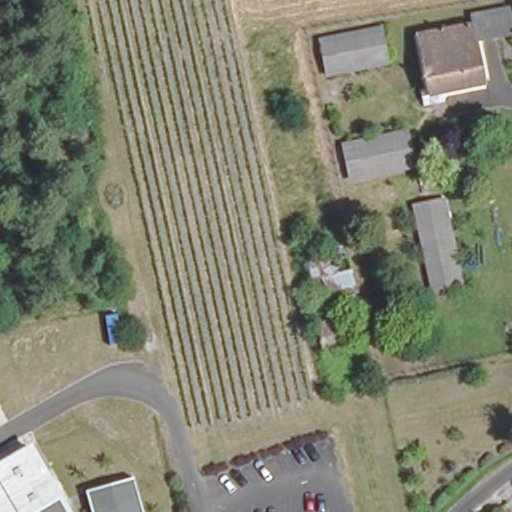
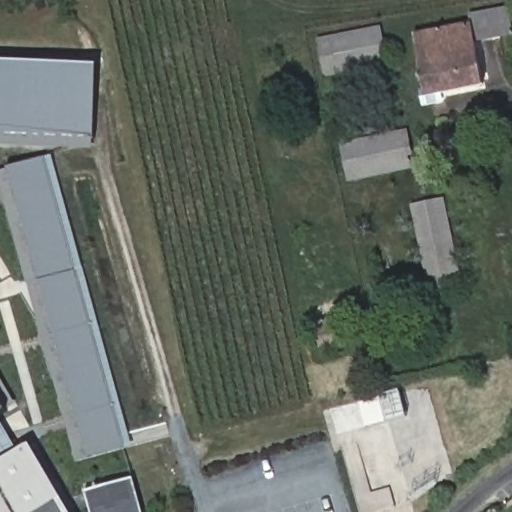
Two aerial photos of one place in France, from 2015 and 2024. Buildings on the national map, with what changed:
unchanged [(413,33),(472,22),(470,12),(508,6),(512,22),(512,37),(476,45),(483,86),(427,100),(413,33)]
unchanged [(324,76),(318,37),(381,24),(388,65),(324,76)]
new [(0,61),(97,65),(95,137),(0,133),(0,61)]
unchanged [(349,184),(339,144),(407,127),(415,155),(408,156),(410,170),(349,184)]
new [(75,270),(122,437),(86,447),(39,281),(9,168),(45,158),(75,270)]
unchanged [(430,290),(411,201),(443,195),(463,285),(430,290)]
demolished [(324,353),(311,291),(302,293),(298,270),(308,268),(305,261),(335,254),(339,271),(351,267),(355,288),(358,293),(345,298),(342,291),(334,292),(342,320),(348,349),(324,353)]
demolished [(97,348),(92,318),(117,315),(123,345),(97,348)]
new [(4,410),(0,402),(0,381),(13,404),(4,410)]
new [(0,412),(0,402),(4,410),(0,412)]
new [(0,458),(0,438),(9,453),(0,458)]
unchanged [(40,512),(0,512),(0,464),(27,448),(45,477),(59,501),(40,512)]
unchanged [(87,495),(135,482),(143,512),(92,512),(87,495)]
unchanged [(59,501),(65,512),(40,512),(59,501)]

